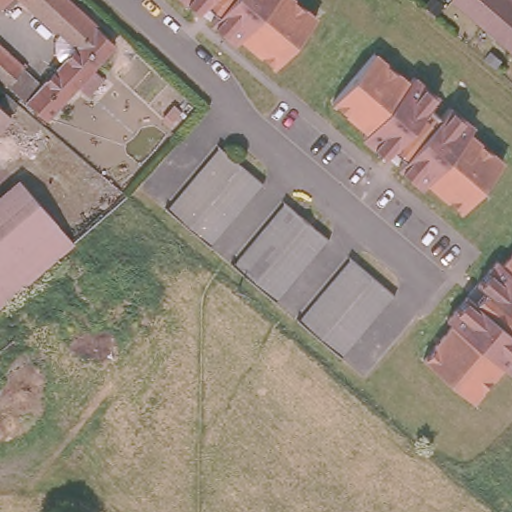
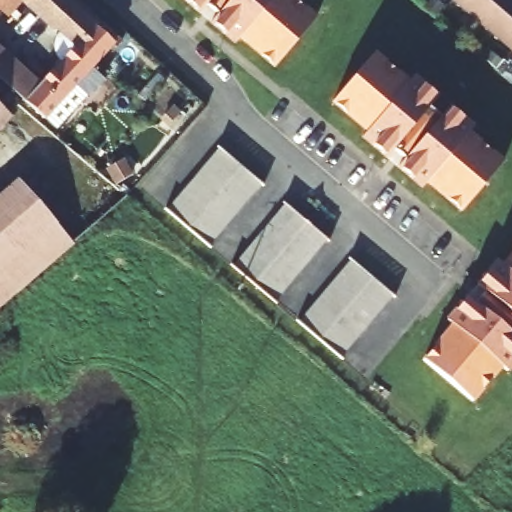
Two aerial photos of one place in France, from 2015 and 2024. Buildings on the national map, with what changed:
unchanged [(0,1),(0,0),(1,0),(0,1)]
unchanged [(97,16),(117,35),(128,44),(115,59),(105,49),(87,67),(97,77),(82,94),(70,85),(40,116),(0,80),(0,51),(37,85),(57,62),(53,56),(51,51),(52,45),(57,34),(19,0),(62,0),(88,24),(97,16)]
unchanged [(197,10),(187,0),(205,0),(197,10)]
unchanged [(208,0),(292,0),(315,20),(273,66),(239,36),(233,41),(210,20),(219,10),(208,0)]
unchanged [(453,0),(512,0),(512,51),(453,0)]
unchanged [(455,212),(421,182),(417,186),(394,166),(402,157),(389,147),(382,155),(360,136),(363,131),(330,101),(371,55),(405,84),(409,79),(432,99),(427,104),(420,112),(432,123),(440,115),(444,110),(467,130),(462,135),(497,165),(455,212)]
unchanged [(0,110),(0,92),(10,101),(2,111),(6,116),(0,122),(0,110)]
unchanged [(207,162),(220,146),(260,182),(207,244),(167,209),(207,162)]
unchanged [(72,242),(0,306),(0,196),(19,180),(72,242)]
unchanged [(280,202),(320,237),(267,299),(226,264),(280,202)]
unchanged [(455,308),(465,297),(475,306),(486,295),(475,286),(495,262),(500,267),(512,254),(512,334),(510,336),(512,338),(512,359),(455,308)]
unchanged [(353,257),(395,293),(342,356),(301,320),(353,257)]
unchanged [(450,325),(445,320),(455,308),(512,359),(512,360),(502,371),(497,366),(468,399),(421,358),(450,325)]

